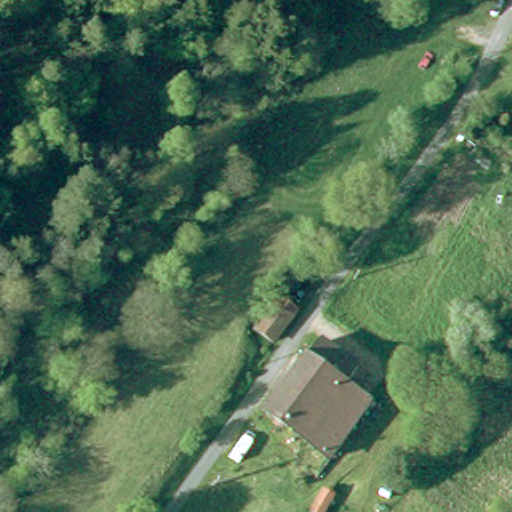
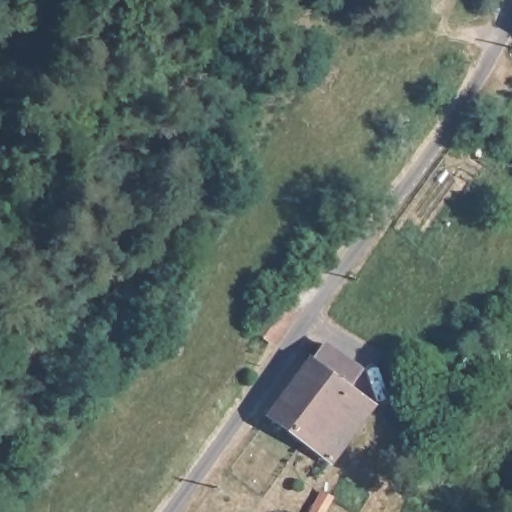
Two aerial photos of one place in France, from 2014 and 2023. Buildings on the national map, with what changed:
unchanged [(251,337),(274,311),(291,324),(269,352),(259,344),(251,337)]
unchanged [(346,378),(336,394),(360,410),(324,468),(256,424),(309,353),(346,378)]

